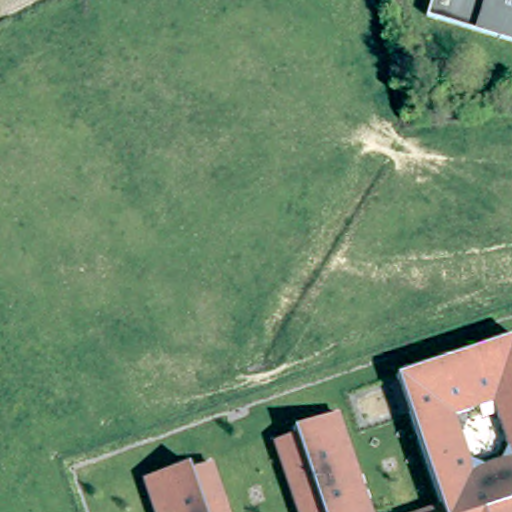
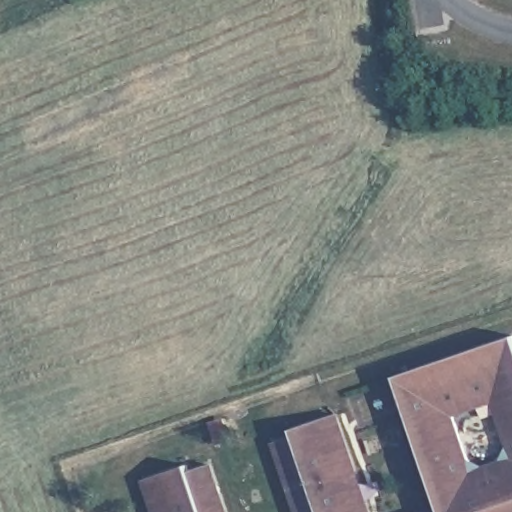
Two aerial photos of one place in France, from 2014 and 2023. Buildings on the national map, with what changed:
demolished [(424,15),(428,0),(512,0),(512,42),(424,15)]
unchanged [(436,497),(395,371),(512,338),(512,460),(512,512),(403,512),(436,497)]
unchanged [(272,441),(344,419),(372,512),(295,512),(272,441)]
unchanged [(142,481),(217,463),(231,512),(153,512),(142,481)]

